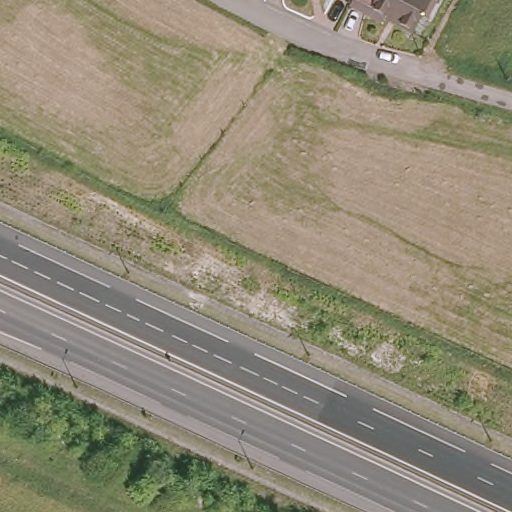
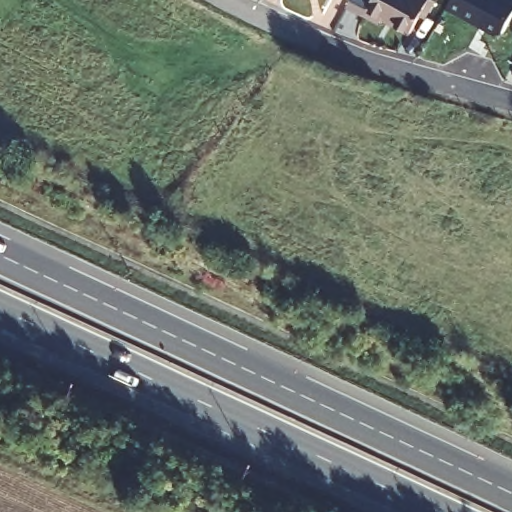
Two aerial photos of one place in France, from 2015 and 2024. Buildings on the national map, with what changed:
unchanged [(383,14),(381,17),(349,0),(426,0),(410,28),(383,14)]
new [(496,34),(447,7),(450,0),(512,0),(512,16),(502,33),(496,34)]

